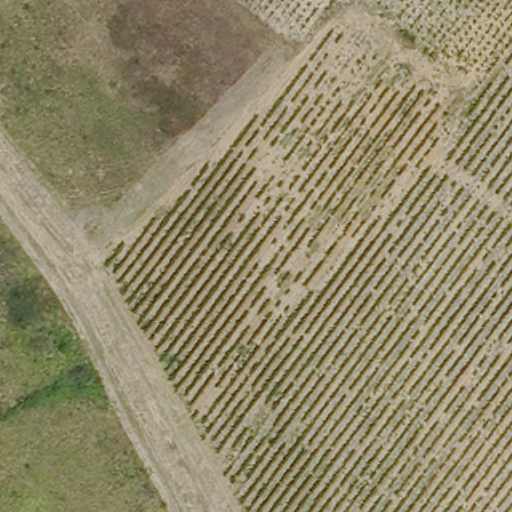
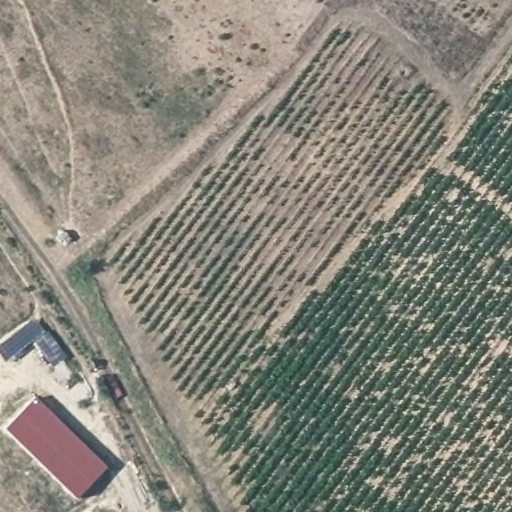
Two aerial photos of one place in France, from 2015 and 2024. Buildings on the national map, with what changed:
new [(33,394),(105,462),(76,493),(3,425),(33,394)]

